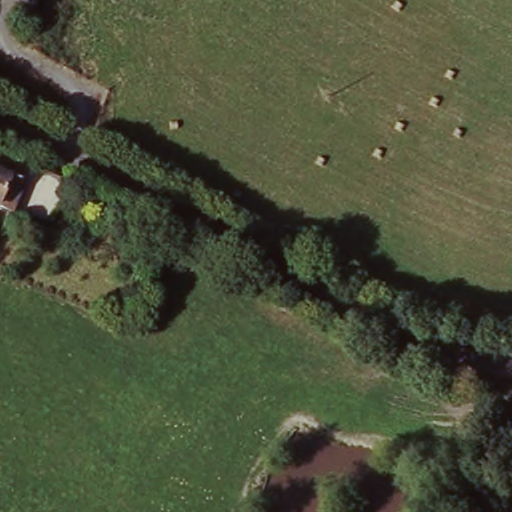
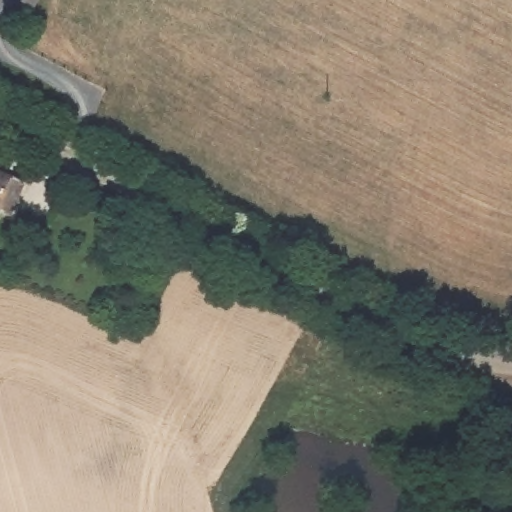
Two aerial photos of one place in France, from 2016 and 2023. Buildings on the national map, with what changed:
unchanged [(43,0),(34,26),(13,20),(20,0),(43,0)]
unchanged [(27,186),(17,215),(0,208),(0,175),(27,186)]

